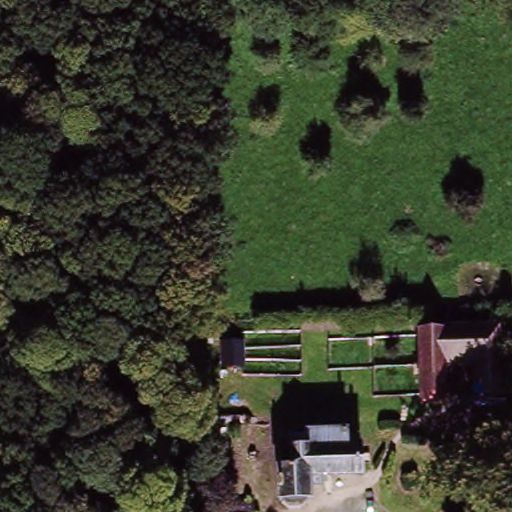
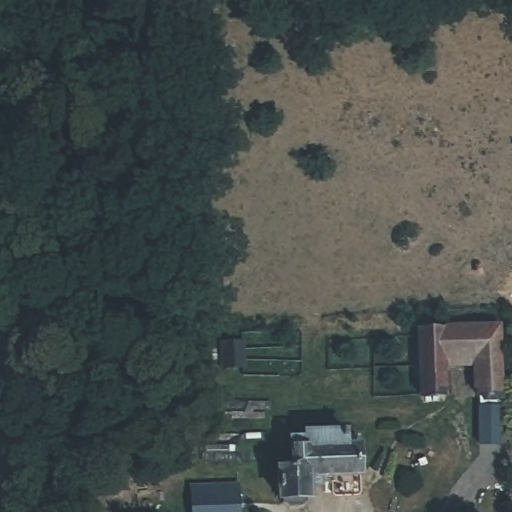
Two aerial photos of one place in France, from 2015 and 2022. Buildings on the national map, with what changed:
unchanged [(496,326),(500,394),(475,395),(473,364),(440,366),(441,400),(417,400),(414,331),(496,326)]
unchanged [(280,466),(280,446),(295,446),(295,432),(342,431),(342,443),(360,443),(361,477),(322,479),(322,491),(304,491),(304,502),(285,502),(282,504),(267,505),(265,466),(280,466)]
new [(190,512),(188,487),(239,485),(241,512),(190,512)]

